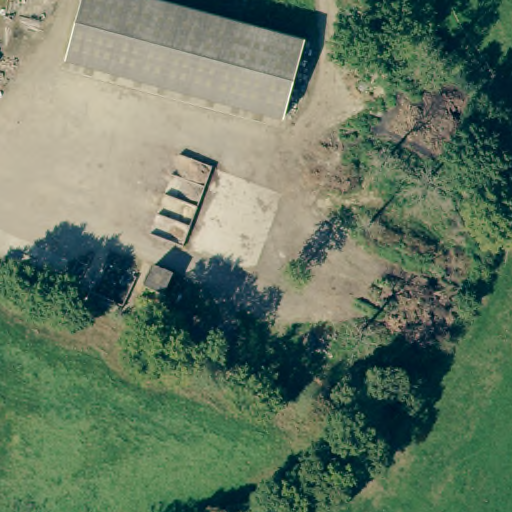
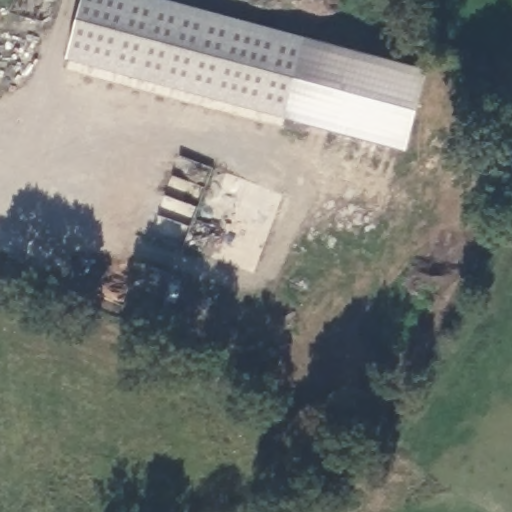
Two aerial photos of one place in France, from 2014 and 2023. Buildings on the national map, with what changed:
unchanged [(284,117),(66,58),(81,0),(167,0),(305,36),(284,117)]
new [(427,69),(406,151),(284,117),(305,36),(427,69)]
unchanged [(169,275),(160,294),(144,287),(151,268),(169,275)]

